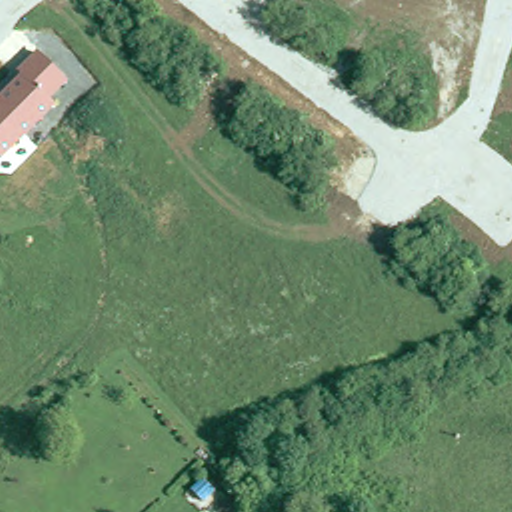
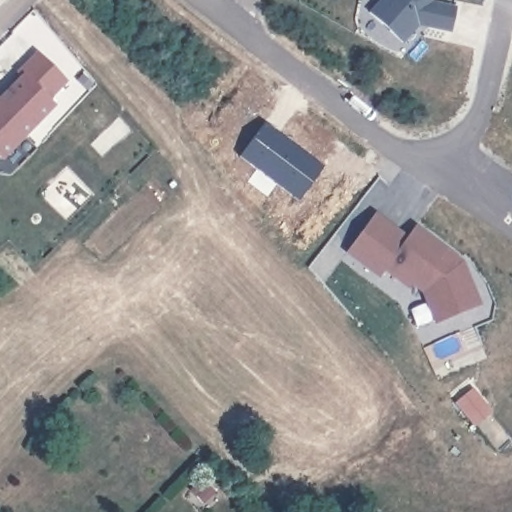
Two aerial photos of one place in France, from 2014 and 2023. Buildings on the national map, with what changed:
new [(433,2),(456,6),(451,32),(418,27),(403,44),(368,12),(378,0),(433,0),(433,2)]
unchanged [(19,72),(17,72),(36,51),(66,81),(49,100),(55,106),(3,162),(0,159),(0,92),(19,72)]
new [(408,235),(415,225),(465,262),(481,304),(436,322),(424,292),(414,287),(411,291),(383,271),(378,278),(345,252),(375,212),(408,235)]

